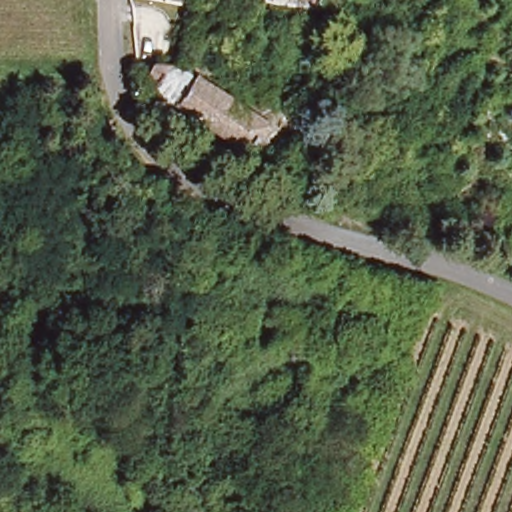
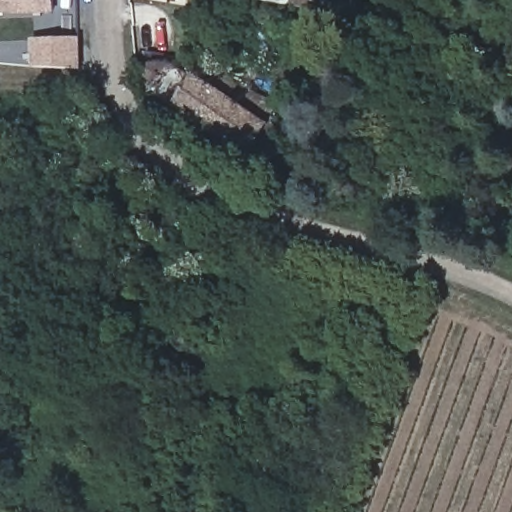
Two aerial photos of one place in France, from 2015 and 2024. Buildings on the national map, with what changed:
new [(52,12),(0,13),(0,0),(52,0),(52,12)]
demolished [(315,6),(279,0),(316,0),(315,6)]
new [(32,38),(79,37),(80,69),(32,70),(32,38)]
unchanged [(137,67),(176,71),(179,71),(195,82),(197,79),(226,98),(206,129),(136,84),(132,67),(137,67)]
unchanged [(270,127),(251,158),(206,129),(226,98),(270,127)]
unchanged [(298,185),(293,192),(285,185),(288,179),(298,185)]

